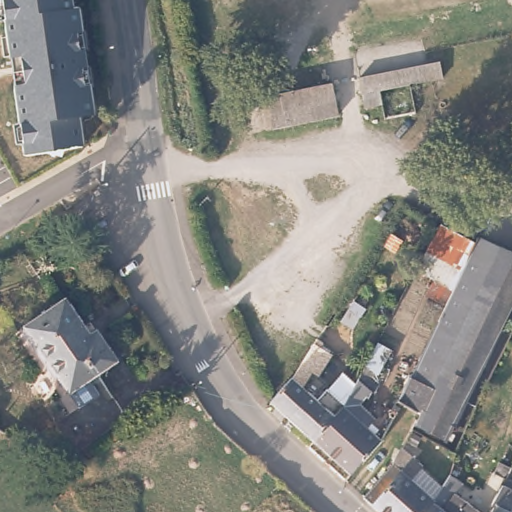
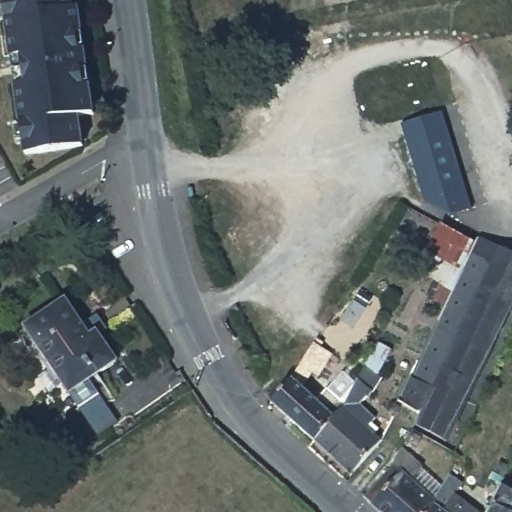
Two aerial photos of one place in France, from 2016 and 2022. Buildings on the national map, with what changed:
unchanged [(97,111),(82,117),(84,146),(24,154),(0,10),(0,0),(77,0),(97,111)]
demolished [(437,57),(441,71),(379,86),(383,101),(365,105),(359,75),(437,57)]
demolished [(271,124),(264,93),(335,77),(342,108),(271,124)]
new [(442,110),(471,208),(451,214),(424,199),(401,124),(442,110)]
unchanged [(453,284),(416,265),(439,220),(474,239),(453,284)]
unchanged [(415,421),(421,410),(398,397),(410,373),(413,374),(480,233),(512,249),(512,305),(447,436),(415,421)]
unchanged [(96,325),(117,356),(89,375),(98,389),(79,401),(25,322),(66,294),(90,329),(96,325)]
unchanged [(344,401),(313,435),(271,397),(292,372),(316,334),(322,339),(319,343),(330,351),(318,375),(311,370),(303,384),(317,396),(327,385),(344,401)]
unchanged [(365,363),(377,341),(387,347),(376,370),(368,383),(372,387),(368,394),(363,390),(360,398),(376,413),(367,423),(382,436),(351,470),(313,435),(344,401),(357,378),(365,363)]
unchanged [(397,410),(391,408),(395,399),(400,402),(397,410)]
unchanged [(397,444),(418,461),(415,465),(424,472),(415,482),(434,498),(423,512),(379,512),(357,492),(389,457),(397,444)]
unchanged [(508,460),(512,462),(512,474),(507,486),(512,488),(512,491),(505,507),(512,511),(512,512),(485,512),(499,479),(508,460)]
unchanged [(450,489),(477,511),(477,512),(423,512),(434,498),(445,468),(458,478),(450,489)]

